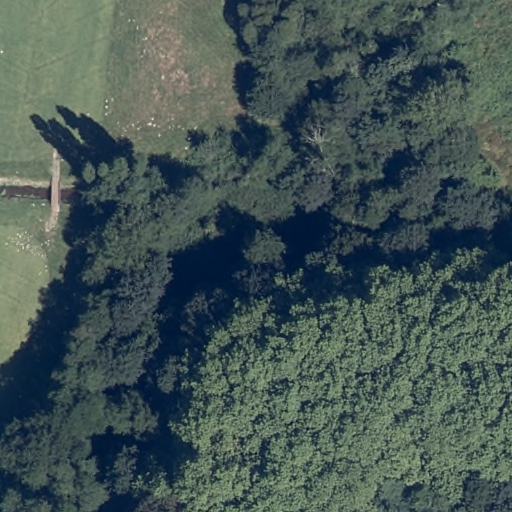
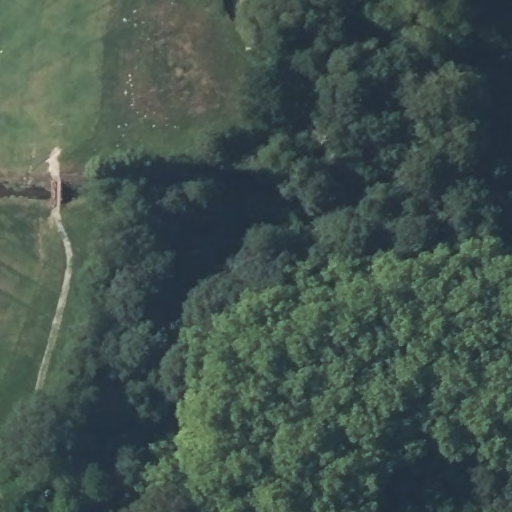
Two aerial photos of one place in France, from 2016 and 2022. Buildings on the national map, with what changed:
[]

